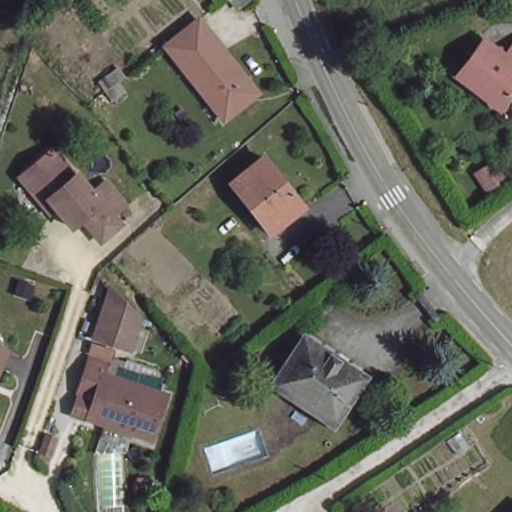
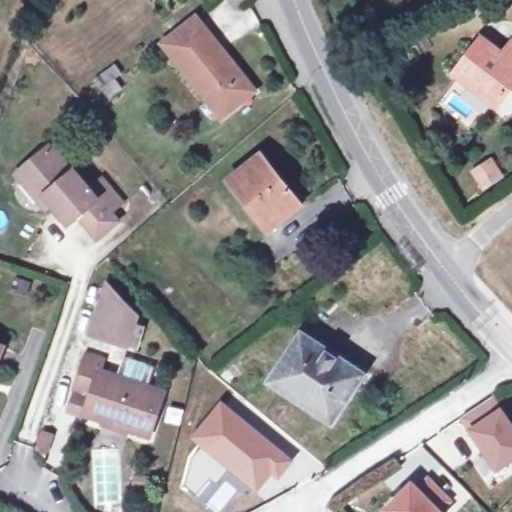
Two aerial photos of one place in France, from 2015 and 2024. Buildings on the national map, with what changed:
unchanged [(207,34),(249,88),(216,112),(175,58),(207,34)]
unchanged [(496,110),(455,80),(481,44),(504,58),(512,46),(512,89),(511,89),(496,110)]
unchanged [(100,233),(91,221),(81,212),(71,218),(55,200),(48,205),(18,171),(25,166),(50,143),(74,170),(76,168),(91,184),(102,176),(120,197),(110,207),(118,217),(100,233)]
unchanged [(264,158),(303,207),(265,236),(225,185),(264,158)]
unchanged [(136,316),(127,345),(110,340),(98,328),(110,288),(136,316)]
unchanged [(359,371),(328,419),(270,382),(298,337),(359,371)]
unchanged [(151,431),(85,408),(91,388),(75,381),(85,351),(101,356),(98,366),(117,372),(124,354),(153,364),(147,382),(165,388),(151,431)]
new [(220,399),(295,459),(277,481),(271,476),(257,493),(188,439),(220,399)]
new [(468,431),(501,408),(512,423),(512,463),(497,473),(468,431)]
new [(382,512),(381,511),(412,481),(417,486),(427,476),(453,502),(443,512),(382,512)]

